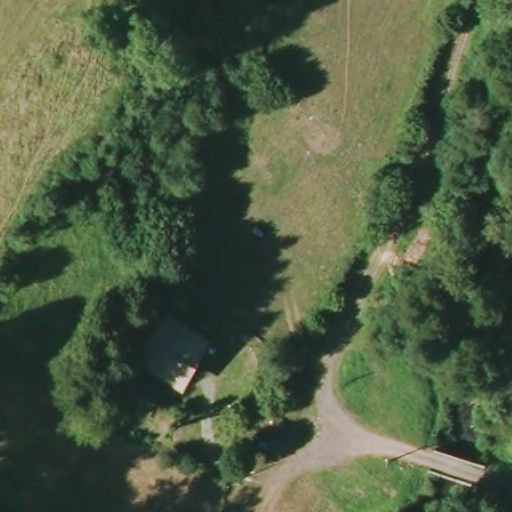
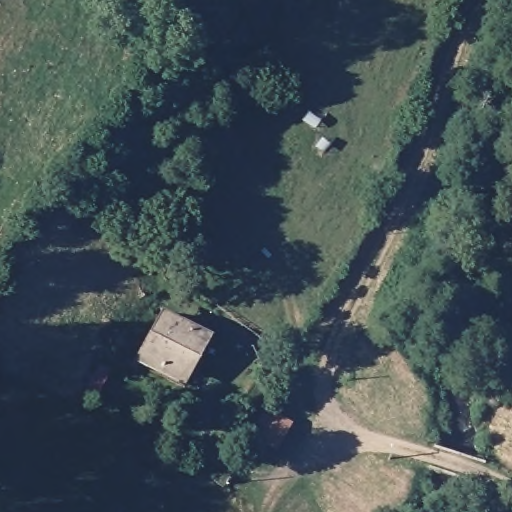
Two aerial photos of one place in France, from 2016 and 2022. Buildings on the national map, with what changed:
unchanged [(141,355),(164,313),(201,334),(180,374),(141,355)]

